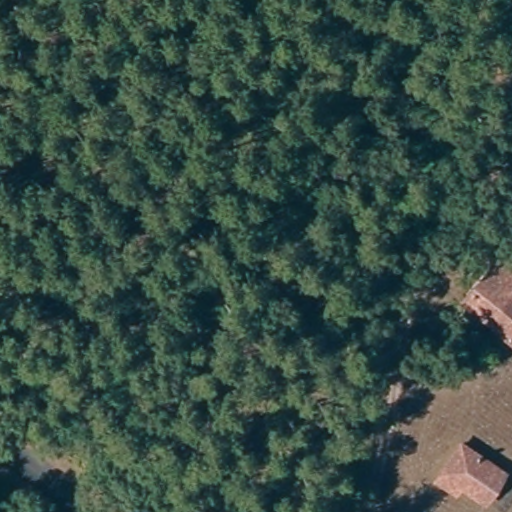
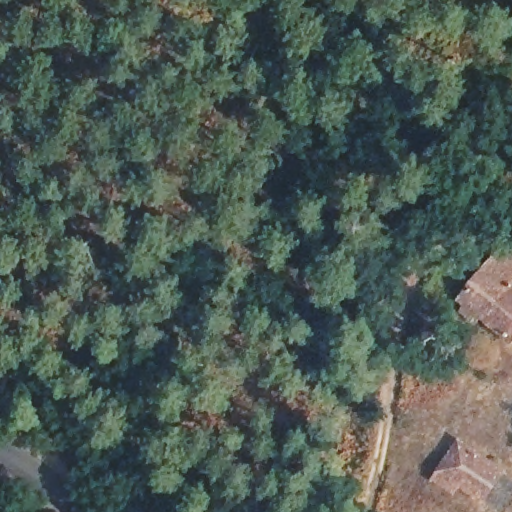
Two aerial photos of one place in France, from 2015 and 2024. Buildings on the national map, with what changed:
unchanged [(498,296),(512,307),(512,331),(499,345),(454,306),(490,266),(509,282),(498,296)]
unchanged [(478,503),(466,496),(438,477),(458,448),(485,467),(497,475),(478,503)]

